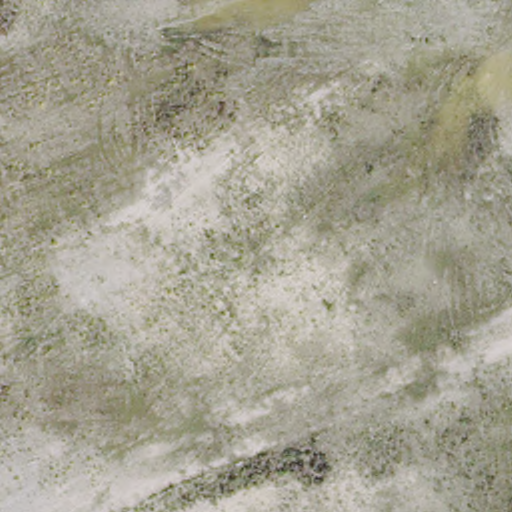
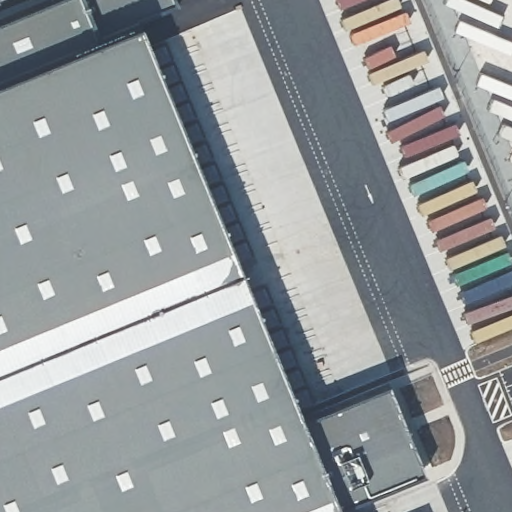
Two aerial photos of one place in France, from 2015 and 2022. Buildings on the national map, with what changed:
new [(406,512),(0,512),(0,86),(192,11),(406,512)]
demolished [(277,462),(298,512),(156,512),(277,462)]

